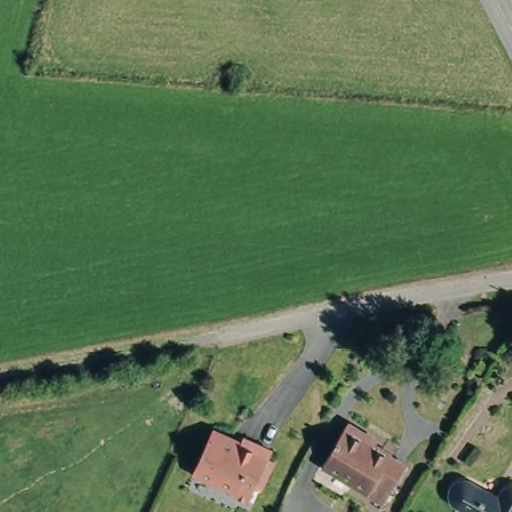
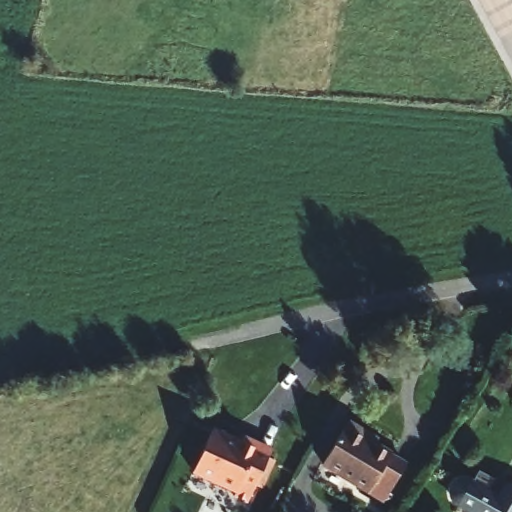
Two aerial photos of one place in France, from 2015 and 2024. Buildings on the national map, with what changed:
unchanged [(346,415),(370,428),(367,433),(388,446),(387,448),(403,456),(382,492),(322,456),(346,415)]
unchanged [(213,424),(242,437),(243,434),(274,447),(270,455),(277,458),(262,485),(257,482),(255,487),(245,482),(241,490),(193,467),(213,424)]
unchanged [(475,511),(451,497),(447,490),(447,488),(448,483),(450,479),(453,476),(454,475),(457,474),(460,473),(464,474),(494,491),(495,490),(497,486),(501,483),(505,481),(510,481),(512,481),(512,512),(475,512),(475,511)]

